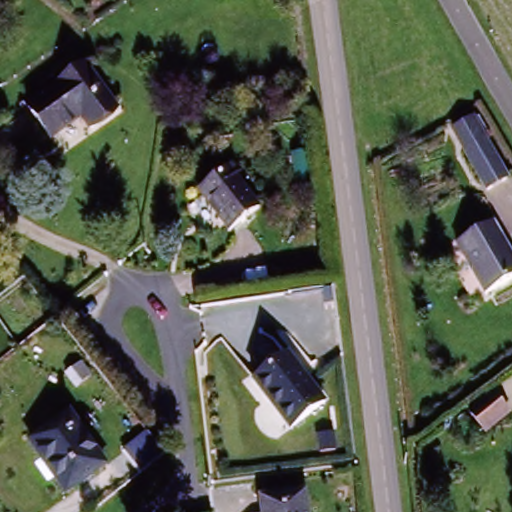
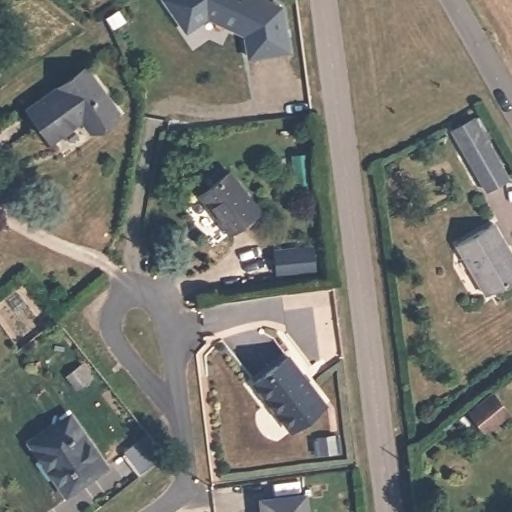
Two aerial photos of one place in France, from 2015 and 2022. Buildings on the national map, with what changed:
new [(276,1),(283,54),(243,59),(239,27),(203,12),(184,23),(169,0),(274,0),(276,1)]
unchanged [(86,69),(118,113),(92,132),(83,120),(53,142),(30,110),(86,69)]
unchanged [(489,189),(468,151),(456,130),(475,119),(486,140),(508,179),(489,189)]
unchanged [(256,211),(227,232),(198,193),(227,171),(256,211)]
unchanged [(491,227),(512,267),(512,282),(481,297),(455,247),(491,227)]
unchanged [(285,430),(249,381),(283,356),(319,405),(285,430)]
unchanged [(502,396),(512,409),(512,417),(492,431),(479,413),(502,396)]
unchanged [(68,492),(32,441),(70,414),(106,465),(68,492)]
unchanged [(165,453),(140,473),(123,451),(147,432),(165,453)]
unchanged [(260,512),(258,496),(301,490),(304,512),(260,512)]

